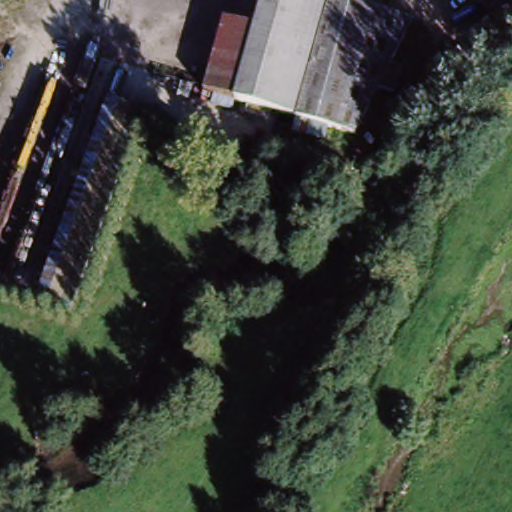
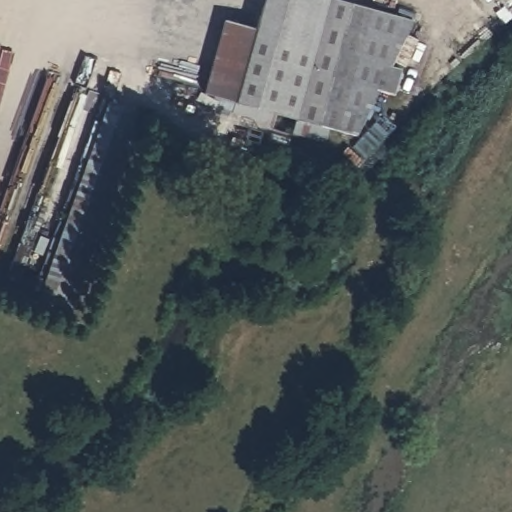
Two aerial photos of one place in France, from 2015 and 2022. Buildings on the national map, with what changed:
unchanged [(292,116),(281,114),(263,109),(232,101),(259,0),(322,0),(317,19),(305,66),(292,116)]
unchanged [(342,0),(410,18),(317,19),(322,0),(342,0)]
unchanged [(382,89),(374,86),(351,132),(292,116),(305,66),(317,19),(410,18),(386,63),(395,65),(392,76),(388,90),(382,89)]
unchanged [(290,175),(295,180),(277,195),(273,190),(290,175)]
unchanged [(304,201),(301,206),(298,209),(295,209),(290,209),(285,206),(283,203),(282,200),(282,195),(285,190),(289,188),(291,187),(296,188),(299,189),(302,192),(305,197),(304,201)]

